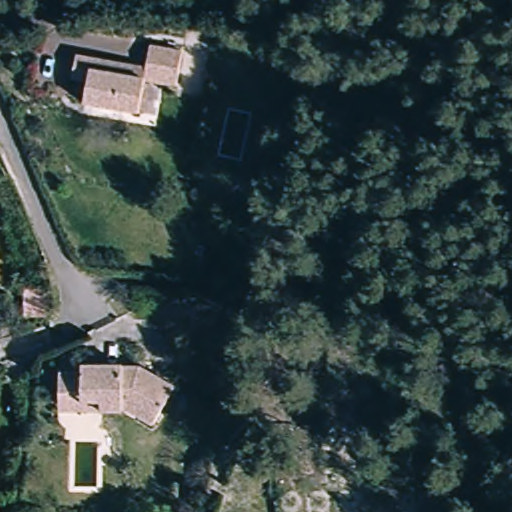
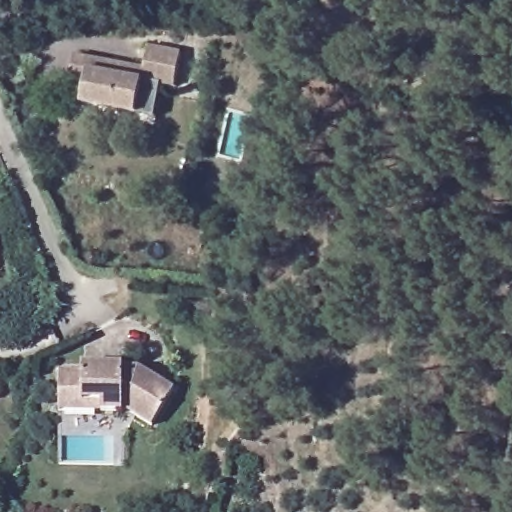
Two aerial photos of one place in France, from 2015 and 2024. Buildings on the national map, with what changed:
unchanged [(76,56),(145,66),(148,44),(180,49),(176,83),(144,79),(140,111),(85,104),(88,82),(73,80),(76,56)]
unchanged [(47,288),(46,317),(22,317),(22,289),(47,288)]
unchanged [(60,406),(60,376),(83,376),(83,370),(123,370),(123,372),(139,372),(173,392),(150,430),(126,415),(122,415),(122,416),(101,416),(60,416),(60,406)]

